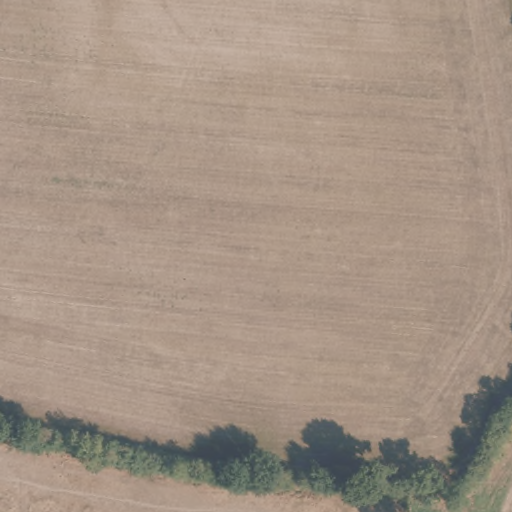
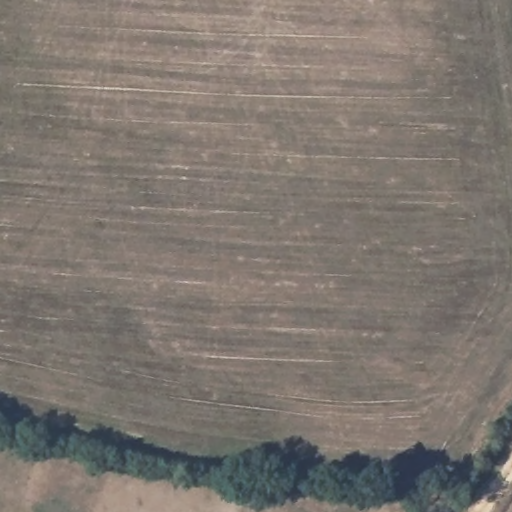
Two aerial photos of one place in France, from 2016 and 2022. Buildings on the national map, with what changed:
[]

